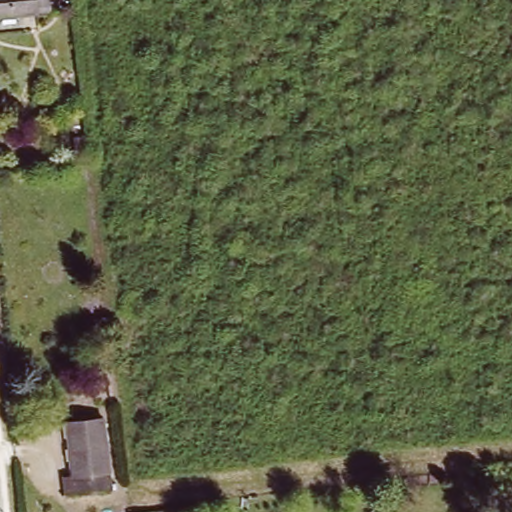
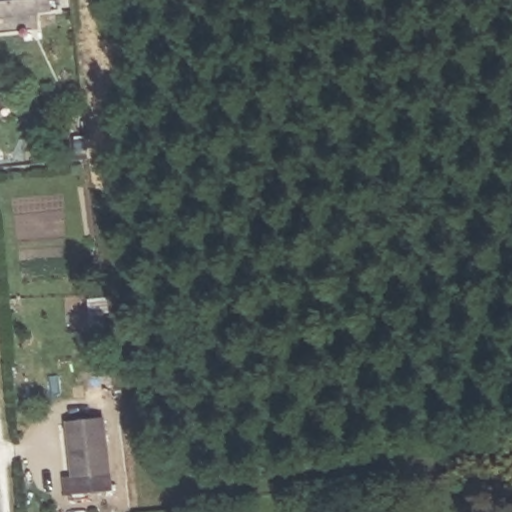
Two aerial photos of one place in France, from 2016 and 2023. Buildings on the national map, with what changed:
unchanged [(47,15),(0,22),(0,0),(45,0),(47,15)]
unchanged [(102,333),(103,347),(94,347),(92,334),(102,333)]
unchanged [(112,489),(66,495),(64,478),(76,477),(70,425),(106,421),(112,489)]

